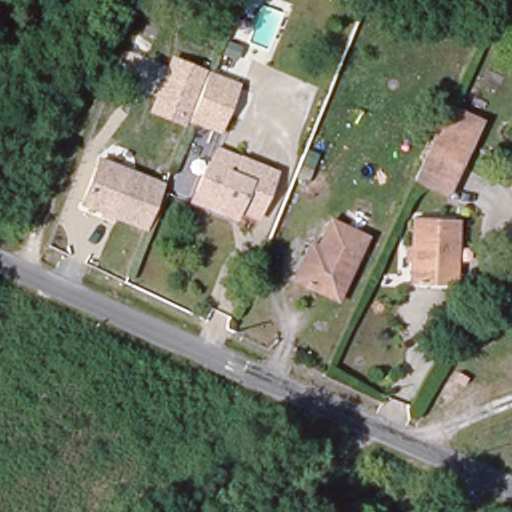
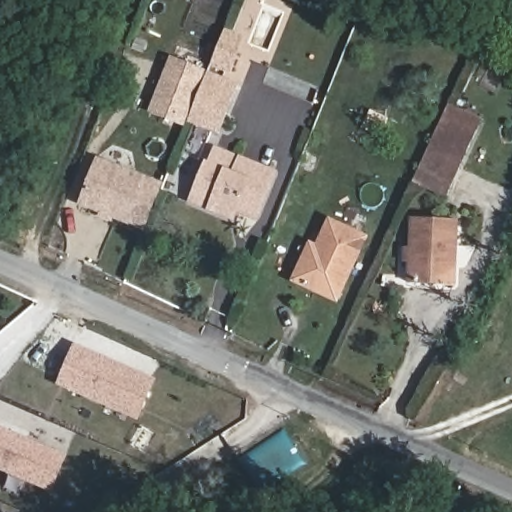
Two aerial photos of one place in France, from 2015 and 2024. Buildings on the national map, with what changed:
unchanged [(206,80),(190,123),(186,130),(149,114),(169,56),(209,70),(206,80)]
unchanged [(240,81),(222,132),(190,123),(209,70),(240,81)]
unchanged [(439,197),(408,183),(436,121),(443,107),(477,122),(470,135),(452,171),(439,197)]
unchanged [(190,194),(202,164),(207,166),(214,150),(277,176),(257,222),(235,211),(231,222),(210,213),(186,203),(190,194)]
unchanged [(146,232),(80,207),(100,159),(165,182),(146,232)]
unchanged [(460,222),(451,290),(405,285),(413,219),(460,222)]
unchanged [(360,241),(332,301),(289,281),(299,257),(306,244),(314,248),(325,224),(360,241)]
new [(156,381),(139,420),(58,384),(74,345),(156,381)]
new [(0,430),(63,457),(54,481),(38,475),(35,481),(0,466),(0,430)]

